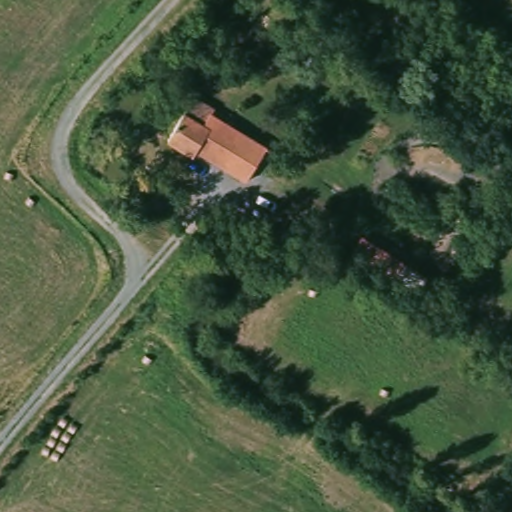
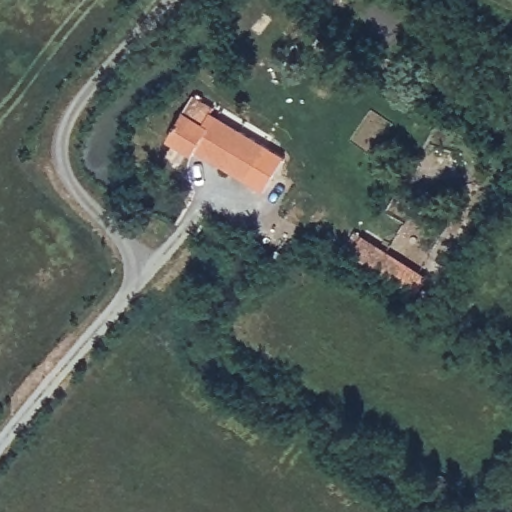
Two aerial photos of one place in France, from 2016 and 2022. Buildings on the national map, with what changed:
unchanged [(209,105),(199,121),(205,124),(190,148),(187,153),(161,137),(179,110),(188,93),(209,105)]
unchanged [(199,134),(205,124),(199,121),(209,105),(270,145),(247,182),(190,148),(199,134)]
unchanged [(420,261),(401,293),(342,259),(362,228),(420,261)]
unchanged [(469,498),(463,508),(440,492),(446,478),(469,498)]

